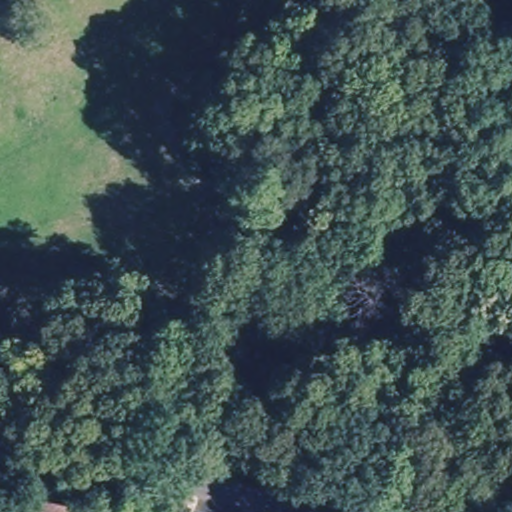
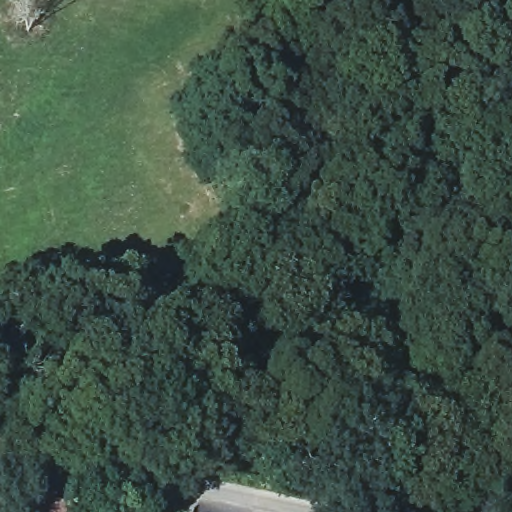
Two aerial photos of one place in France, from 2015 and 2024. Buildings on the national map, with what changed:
unchanged [(41,504),(63,508),(62,512),(39,512),(41,504)]

